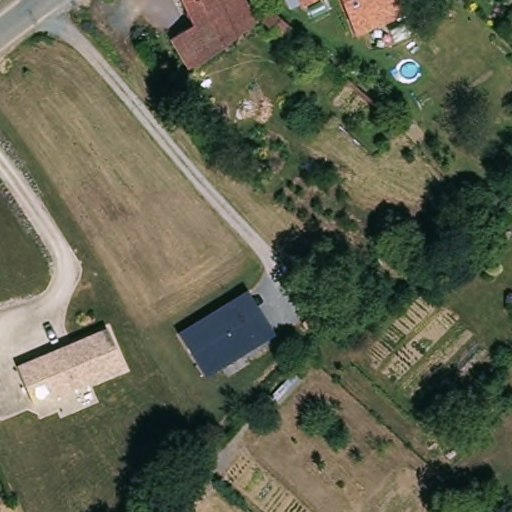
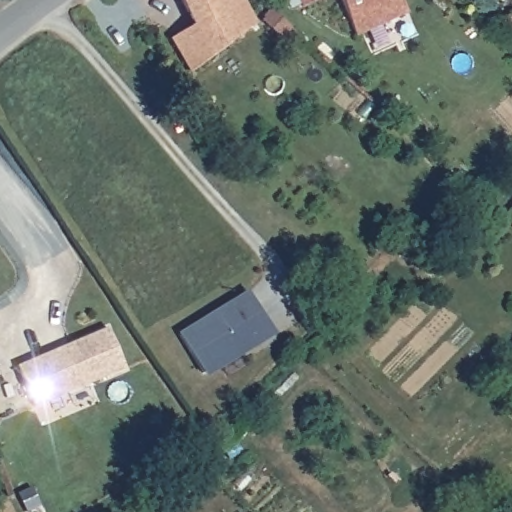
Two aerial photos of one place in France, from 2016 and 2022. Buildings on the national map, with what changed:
unchanged [(209,68),(192,23),(181,0),(245,0),(262,41),(209,68)]
unchanged [(261,9),(271,0),(285,12),(275,24),(261,9)]
unchanged [(394,0),(399,10),(352,39),(332,6),(325,7),(321,1),(302,11),(297,0),(394,0)]
unchanged [(209,68),(186,79),(167,35),(192,23),(209,68)]
unchanged [(289,57),(268,38),(278,26),(282,30),(293,39),(300,46),(289,57)]
unchanged [(272,334),(203,376),(178,333),(247,291),(272,334)]
unchanged [(23,365),(111,324),(130,364),(41,404),(23,365)]

